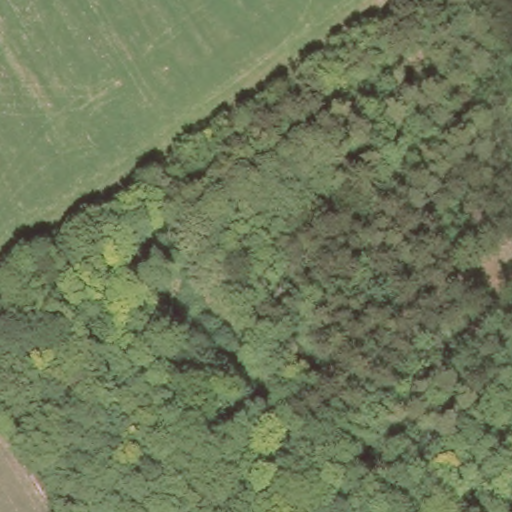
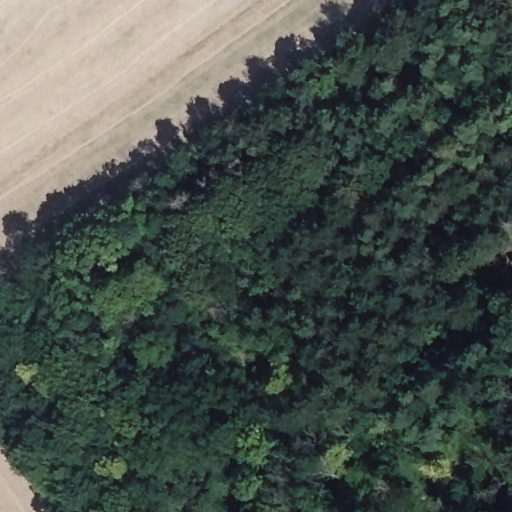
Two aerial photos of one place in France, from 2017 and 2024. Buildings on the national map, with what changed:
[]

